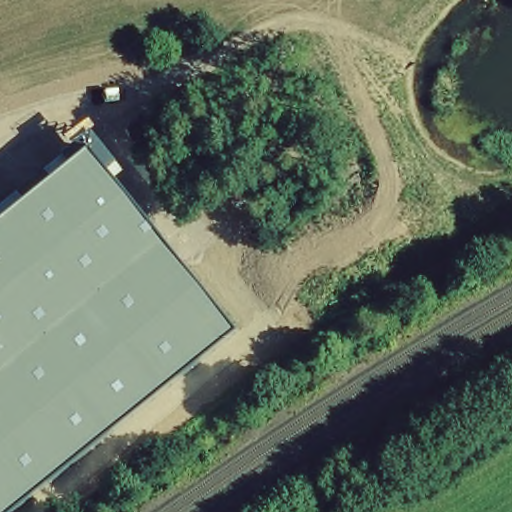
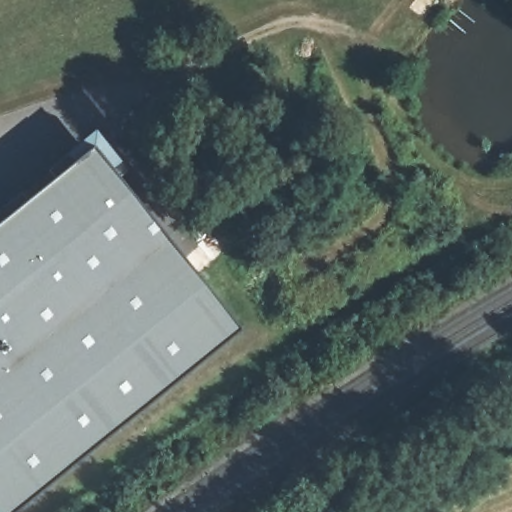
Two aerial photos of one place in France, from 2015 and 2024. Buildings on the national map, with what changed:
unchanged [(0,223),(92,149),(239,330),(12,512),(0,512),(0,223)]

